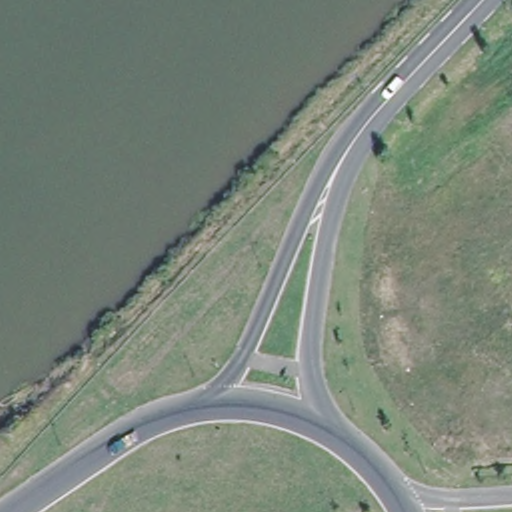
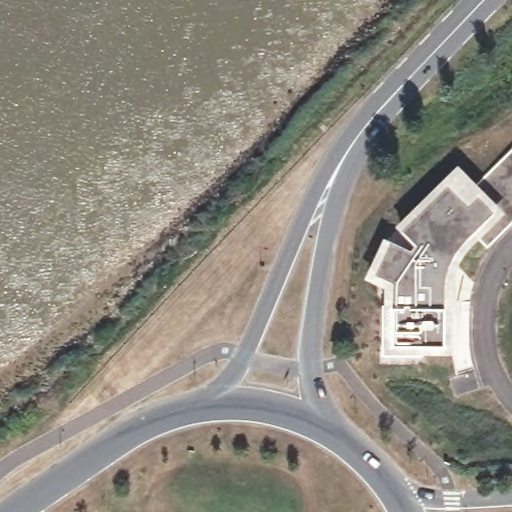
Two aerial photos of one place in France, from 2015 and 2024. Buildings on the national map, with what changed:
new [(416,253),(421,248),(407,233),(453,188),(463,177),(478,192),(512,159),(512,232),(493,251),(478,236),(444,270),(443,289),(451,289),(450,334),(435,334),(434,348),(432,348),(432,346),(426,346),(426,357),(396,357),(396,346),(390,346),(389,356),(387,356),(388,308),(397,308),(397,284),(379,276),(394,243),(416,253)]

